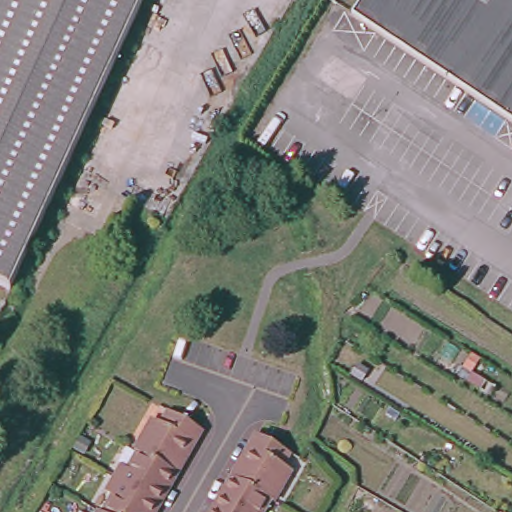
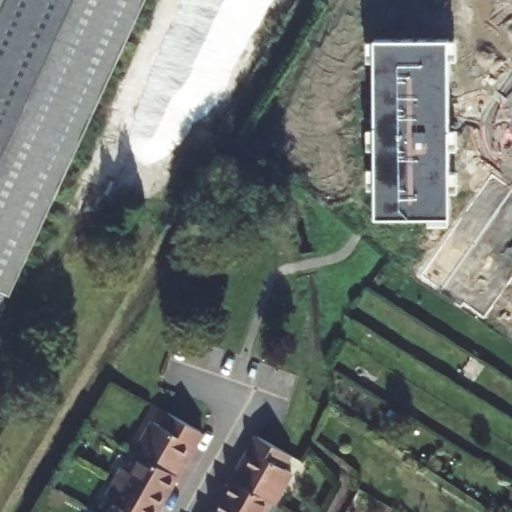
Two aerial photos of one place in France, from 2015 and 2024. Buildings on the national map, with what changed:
unchanged [(0,289),(0,0),(140,0),(5,291),(0,289)]
demolished [(363,0),(512,0),(512,129),(350,20),(363,0)]
new [(452,41),(458,40),(459,60),(454,61),(454,99),(450,99),(450,122),(453,122),(454,173),(459,173),(459,194),(454,194),(454,220),(450,220),(450,226),(430,226),(429,221),(374,221),(374,172),(368,172),(369,128),(374,128),(372,62),(368,61),(368,42),(374,41),(374,36),(452,36),(452,41)]
unchanged [(147,421),(155,425),(162,412),(165,407),(199,426),(197,431),(174,471),(140,452),(132,447),(147,421)]
unchanged [(251,432),(286,451),(279,464),(286,468),(269,500),(264,498),(226,478),(251,432)]
unchanged [(114,479),(122,465),(130,469),(140,452),(174,471),(157,502),(114,479)]
unchanged [(256,512),(213,512),(209,509),(226,478),(264,498),(256,512)]
unchanged [(152,512),(106,512),(115,497),(107,493),(114,479),(157,502),(152,512)]
unchanged [(213,512),(207,512),(209,509),(213,512)]

